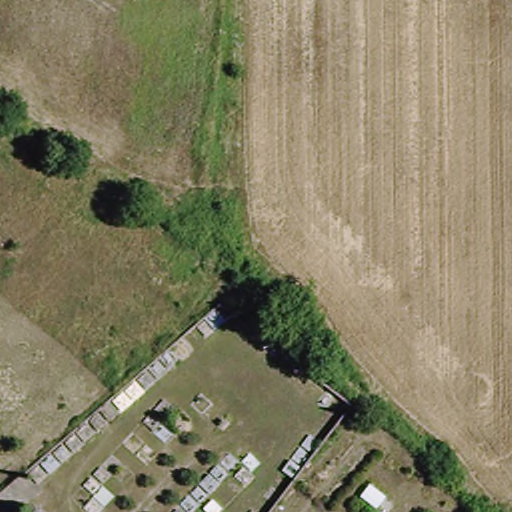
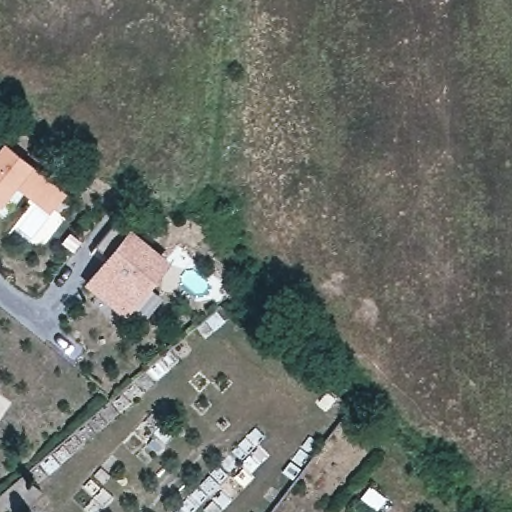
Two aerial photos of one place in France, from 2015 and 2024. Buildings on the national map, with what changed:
new [(8,142),(66,189),(52,207),(16,178),(0,198),(0,152),(8,142)]
new [(119,218),(131,228),(171,261),(149,289),(163,299),(143,323),(130,312),(125,318),(83,284),(107,256),(96,246),(119,218)]
unchanged [(20,512),(15,512),(0,502),(0,496),(25,476),(38,489),(20,512)]

